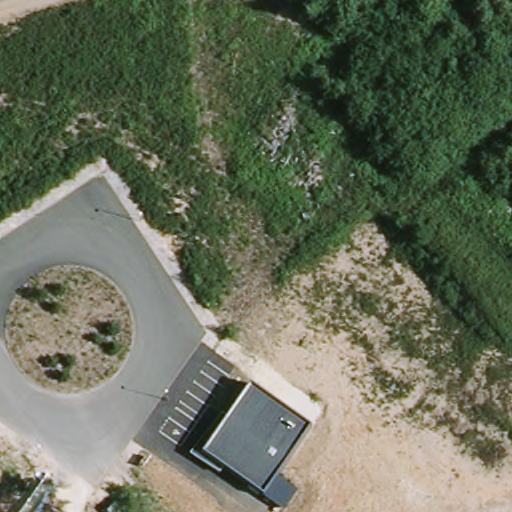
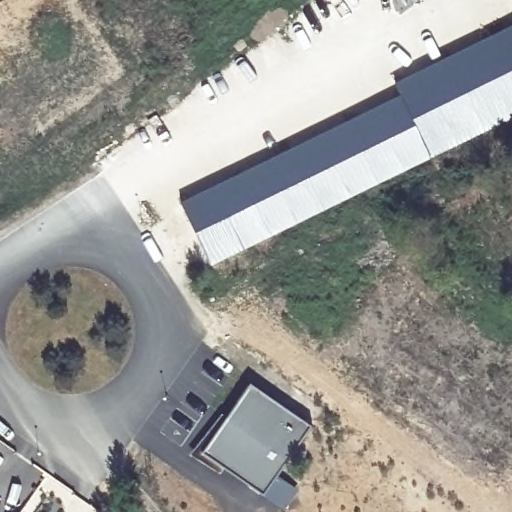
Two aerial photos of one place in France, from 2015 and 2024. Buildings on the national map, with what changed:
new [(403,0),(425,0),(411,11),(403,0)]
new [(400,102),(393,89),(512,31),(512,124),(210,272),(180,210),(400,102)]
unchanged [(312,425),(278,474),(300,490),(285,510),(203,454),(250,385),(312,425)]

